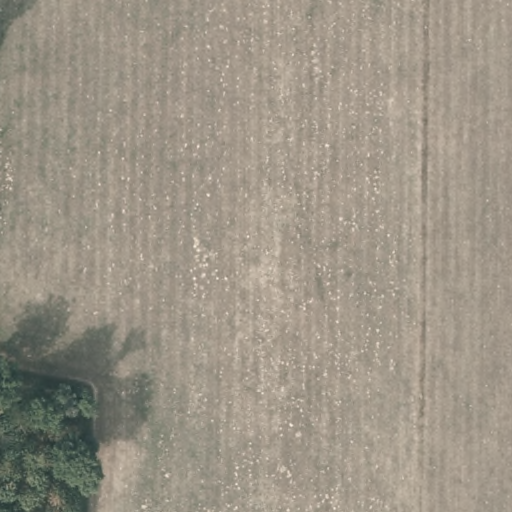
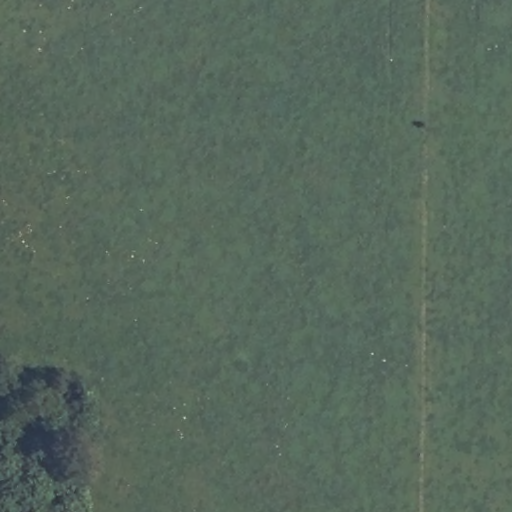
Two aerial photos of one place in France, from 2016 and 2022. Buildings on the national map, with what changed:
[]

